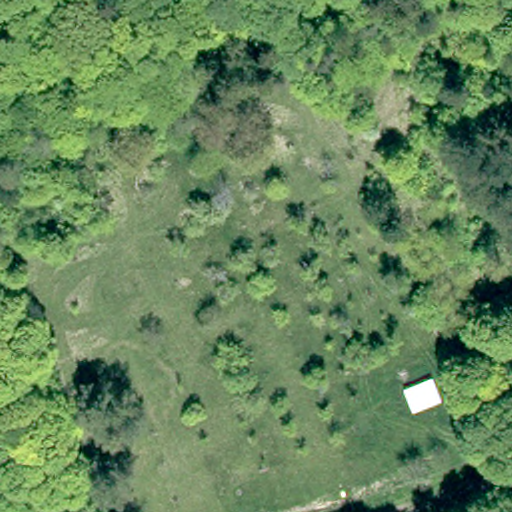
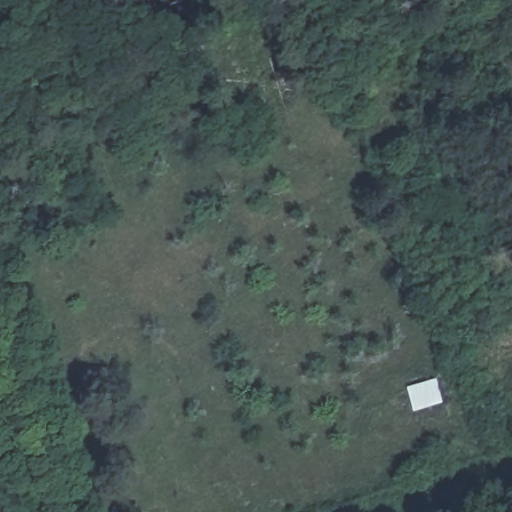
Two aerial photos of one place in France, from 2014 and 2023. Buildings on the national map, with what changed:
unchanged [(432,372),(441,400),(407,412),(399,387),(432,372)]

